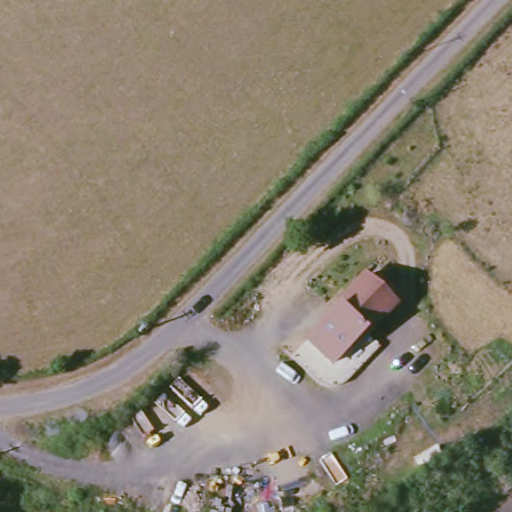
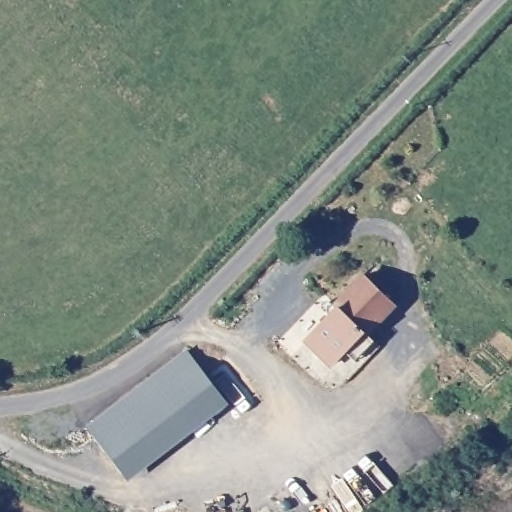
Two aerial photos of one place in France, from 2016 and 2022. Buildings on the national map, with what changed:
unchanged [(328,365),(304,341),(336,308),(334,305),(362,277),(392,308),(363,336),(360,333),(328,365)]
new [(128,478),(88,425),(187,348),(227,404),(128,478)]

